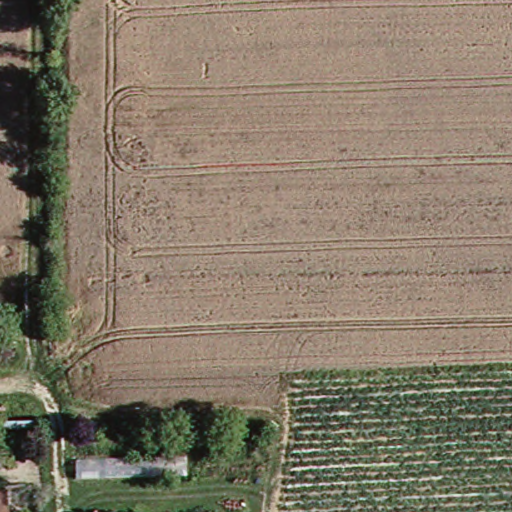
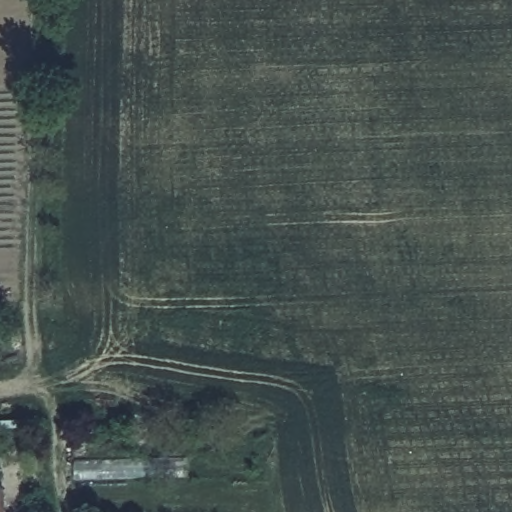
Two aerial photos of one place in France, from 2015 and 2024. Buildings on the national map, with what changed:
unchanged [(15,512),(0,512),(0,495),(15,494),(15,512)]

